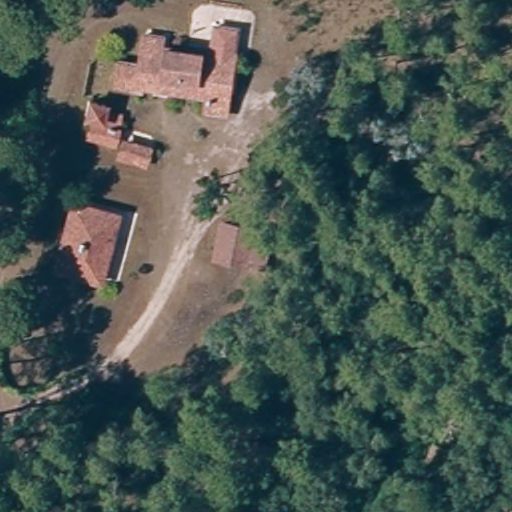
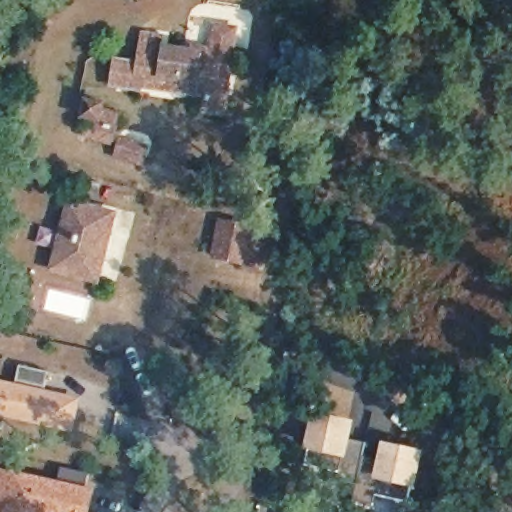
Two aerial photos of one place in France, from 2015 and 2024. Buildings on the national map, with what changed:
unchanged [(219,112),(202,110),(203,94),(134,84),(132,89),(109,85),(111,65),(136,67),(140,39),(159,42),(159,48),(225,58),(219,112)]
unchanged [(100,102),(100,107),(115,112),(108,138),(141,147),(137,164),(105,156),(107,146),(73,139),(79,120),(73,119),(76,97),(100,102)]
unchanged [(92,280),(50,270),(65,206),(107,216),(92,280)]
unchanged [(256,261),(210,252),(217,218),(263,227),(256,261)]
new [(74,432),(0,416),(0,381),(81,399),(74,432)]
new [(376,495),(373,505),(337,500),(340,471),(306,465),(312,412),(356,420),(353,438),(366,441),(365,455),(380,456),(383,440),(426,450),(417,486),(411,486),(409,501),(376,495)]
demolished [(435,483),(407,477),(417,435),(445,441),(435,483)]
new [(0,466),(97,490),(94,512),(0,512),(0,466)]

